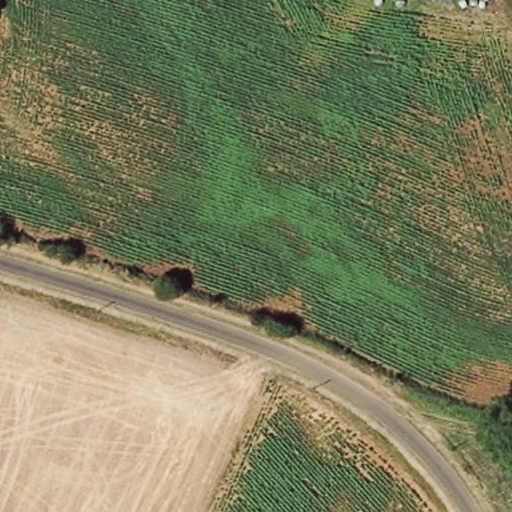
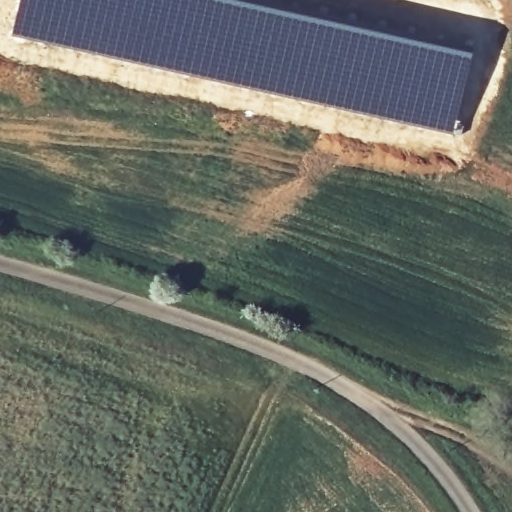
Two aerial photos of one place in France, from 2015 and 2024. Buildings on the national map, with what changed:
new [(17,0),(250,0),(472,50),(452,134),(368,113),(9,33),(17,0)]

